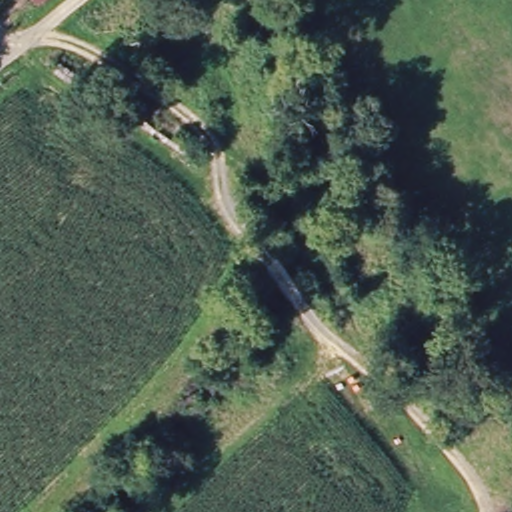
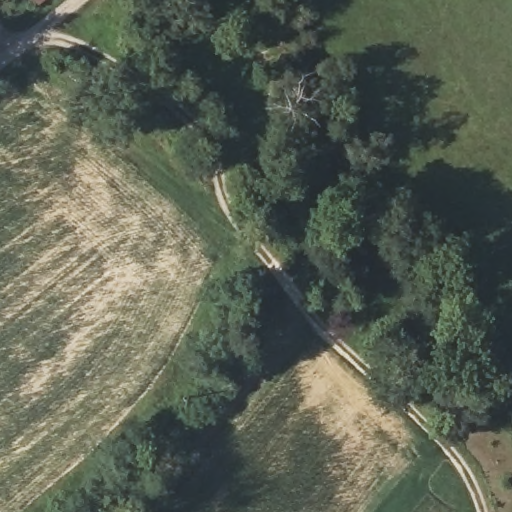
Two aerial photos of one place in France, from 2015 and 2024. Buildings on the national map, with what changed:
unchanged [(37,4),(34,0),(41,0),(37,4)]

